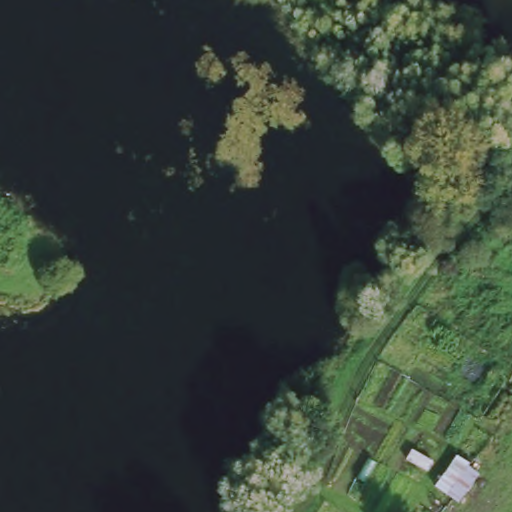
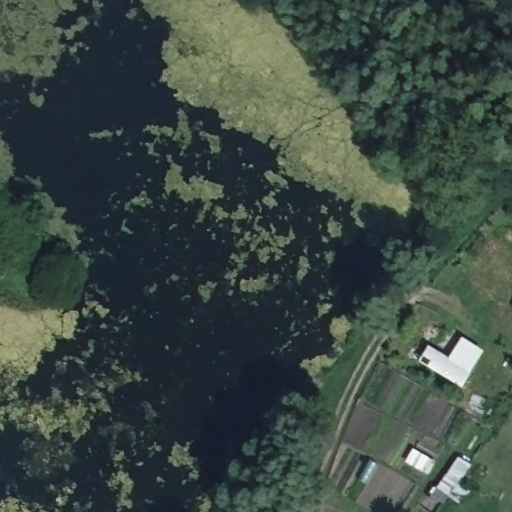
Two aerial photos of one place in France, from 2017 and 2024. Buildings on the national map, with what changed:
new [(462,338),(484,350),(463,388),(419,363),(428,347),(449,359),(462,338)]

